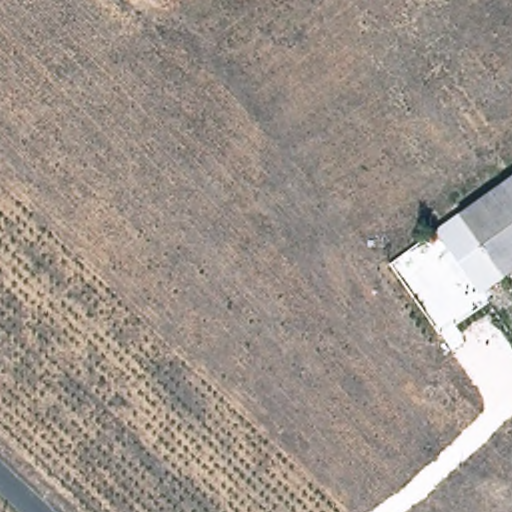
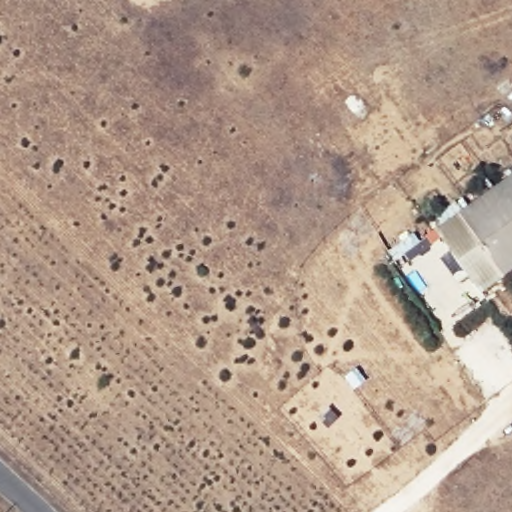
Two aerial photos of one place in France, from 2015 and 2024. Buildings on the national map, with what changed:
unchanged [(480,289),(436,229),(512,174),(512,266),(480,289)]

